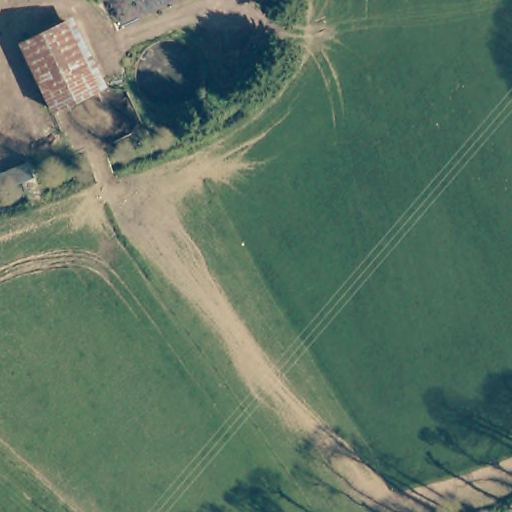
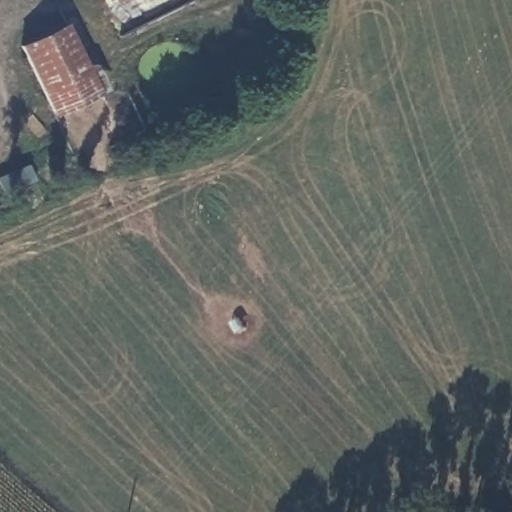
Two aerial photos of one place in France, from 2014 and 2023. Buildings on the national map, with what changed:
unchanged [(69,28),(102,96),(57,118),(23,50),(69,28)]
unchanged [(22,165),(28,179),(0,190),(0,174),(22,165)]

